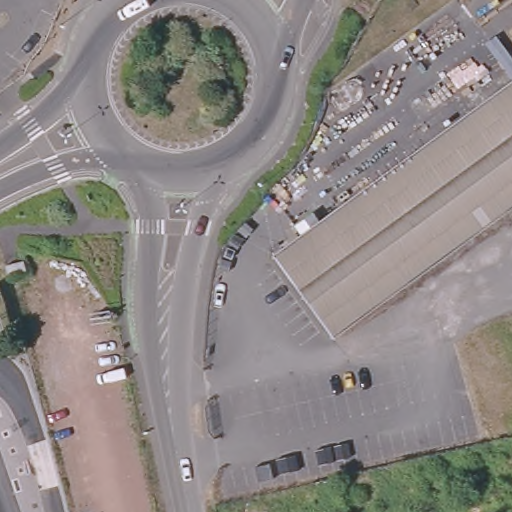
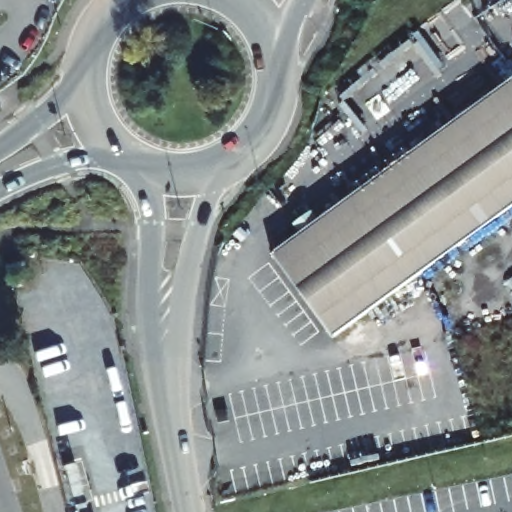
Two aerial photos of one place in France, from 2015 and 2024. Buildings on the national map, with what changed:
unchanged [(325,331),(269,254),(304,229),(512,75),(512,202),(331,337),(325,331)]

